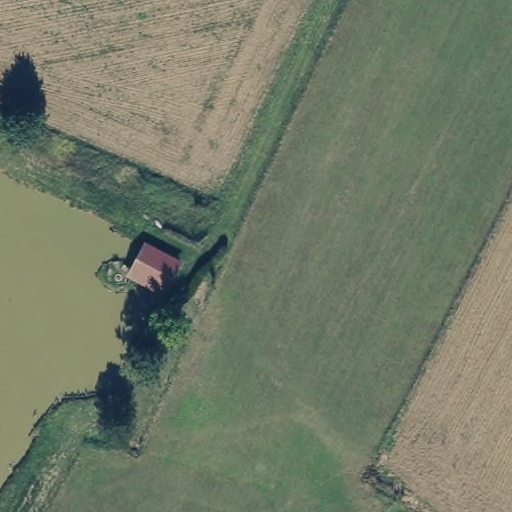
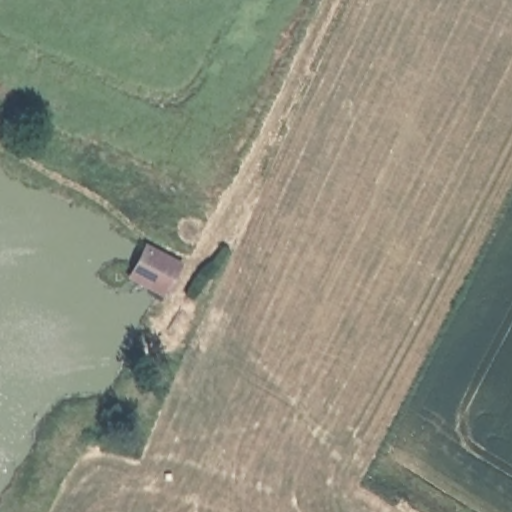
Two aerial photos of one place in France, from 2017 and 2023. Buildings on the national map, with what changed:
unchanged [(166,301),(128,281),(147,249),(185,269),(166,301)]

